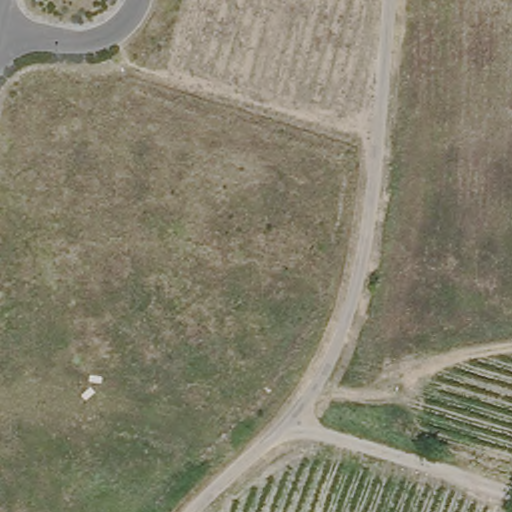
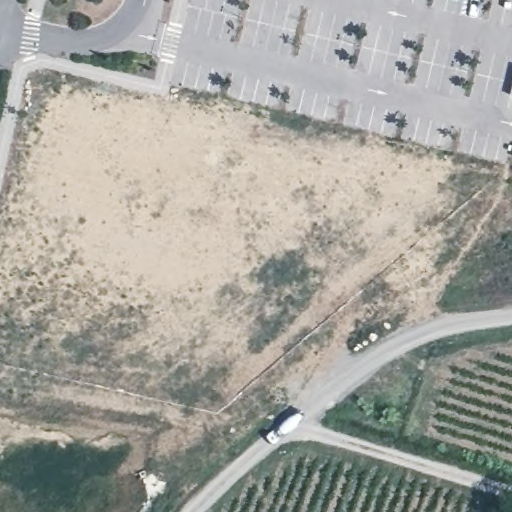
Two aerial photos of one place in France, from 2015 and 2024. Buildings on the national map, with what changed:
[]

